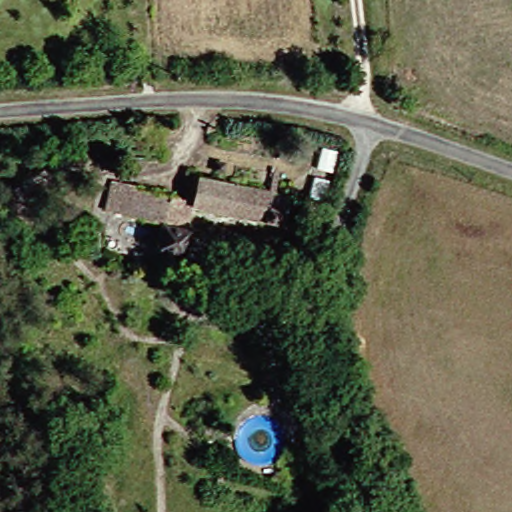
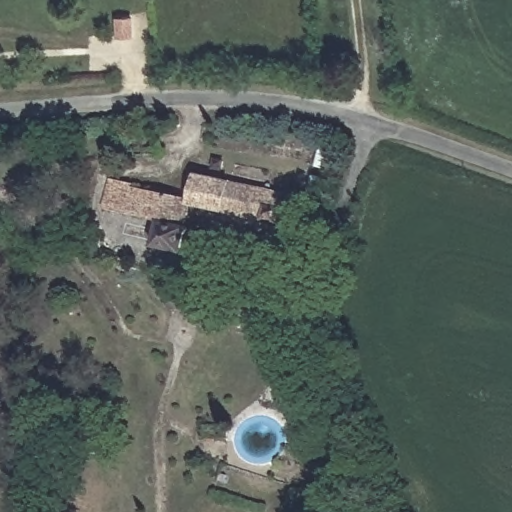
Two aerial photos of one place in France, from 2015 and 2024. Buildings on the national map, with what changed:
unchanged [(326,162),(310,157),(314,134),(331,139),(326,162)]
unchanged [(317,194),(301,186),(289,183),(294,171),(301,174),(307,164),(324,167),(317,194)]
unchanged [(165,196),(169,197),(167,202),(206,204),(211,177),(281,192),(276,213),(213,205),(203,260),(168,254),(173,228),(156,225),(165,196)]
unchanged [(124,220),(128,184),(153,184),(153,195),(165,196),(156,225),(124,220)]
unchanged [(309,220),(293,214),(298,194),(314,198),(309,220)]

